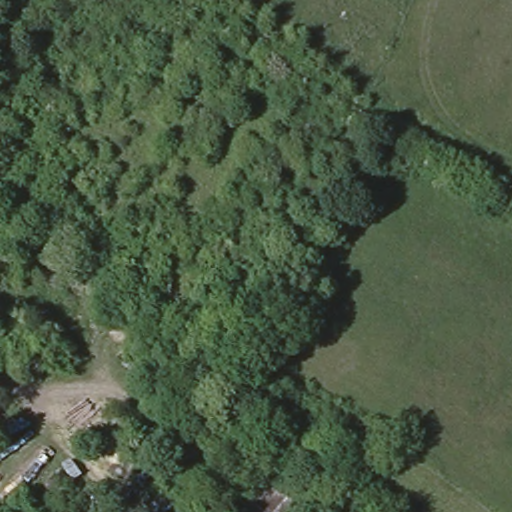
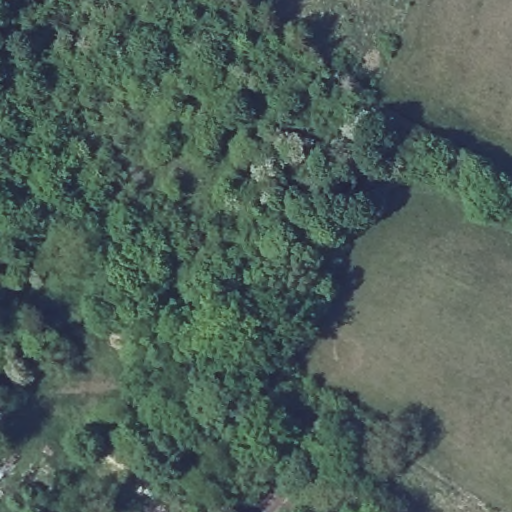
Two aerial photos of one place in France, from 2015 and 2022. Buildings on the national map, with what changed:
unchanged [(298,499),(288,512),(279,512),(262,498),(275,481),(298,499)]

